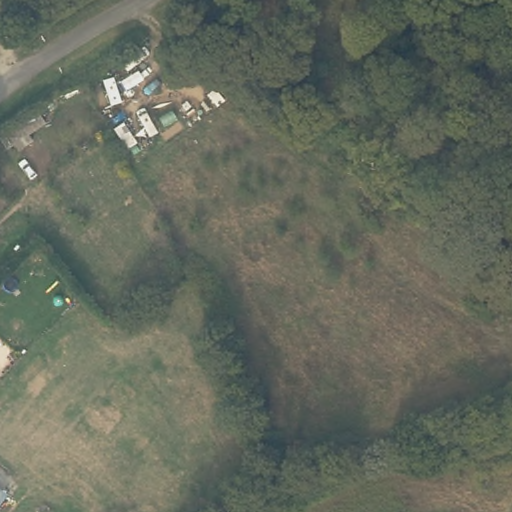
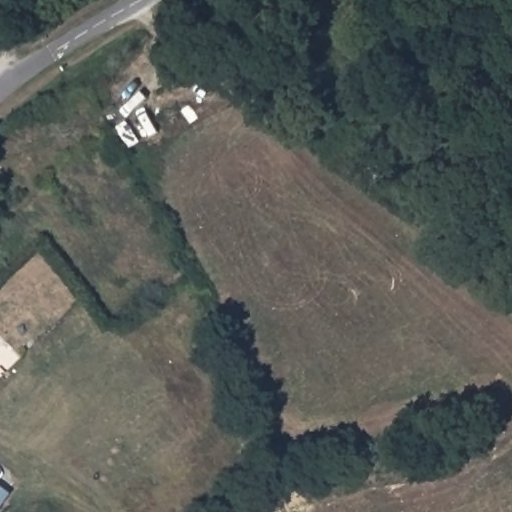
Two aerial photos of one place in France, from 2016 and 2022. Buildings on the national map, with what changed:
unchanged [(46,121),(28,134),(32,140),(20,149),(16,142),(7,148),(0,138),(0,137),(39,111),(46,121)]
unchanged [(0,489),(7,495),(0,504),(0,489)]

